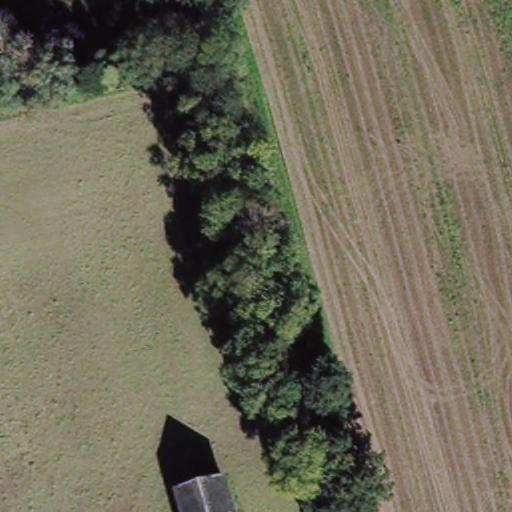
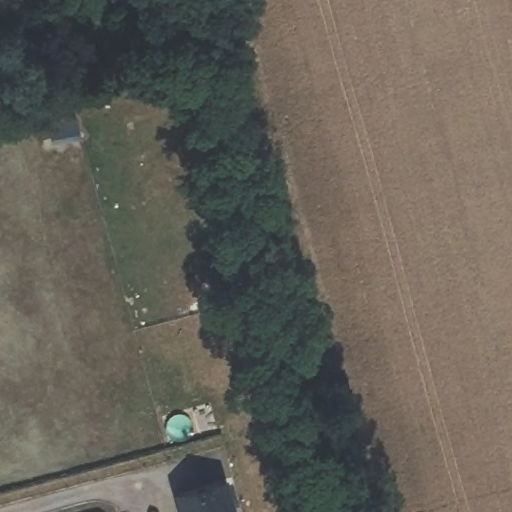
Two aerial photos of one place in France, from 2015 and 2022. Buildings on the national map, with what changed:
unchanged [(217,481),(223,512),(181,512),(176,491),(217,481)]

